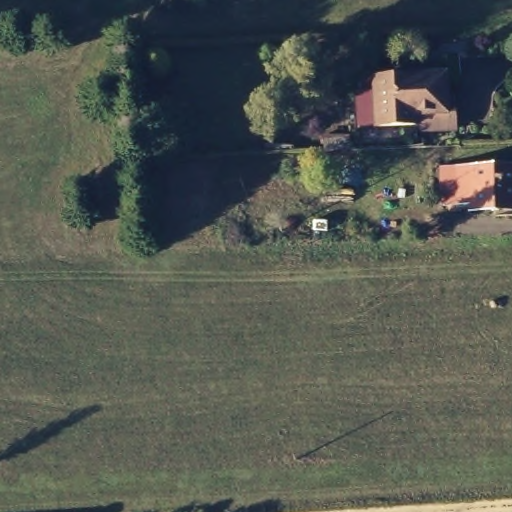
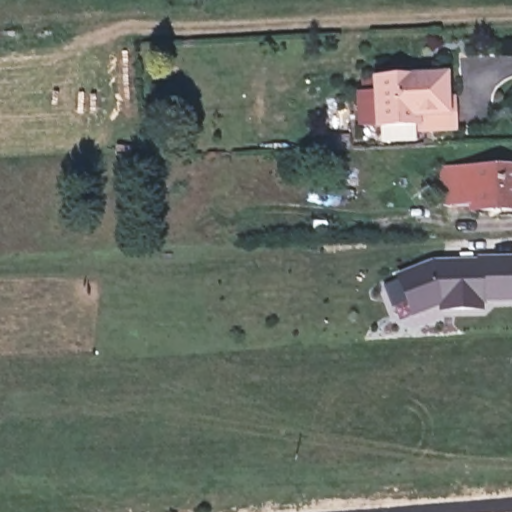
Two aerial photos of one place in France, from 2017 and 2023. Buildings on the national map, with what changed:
unchanged [(354,88),(372,87),(371,73),(442,70),(443,92),(450,92),(451,125),(414,127),(413,120),(374,122),(356,123),(354,88)]
unchanged [(472,199),(457,199),(442,199),(442,164),(455,164),(512,163),(512,205),(472,205),(472,199)]
new [(481,263),(481,260),(512,259),(512,299),(484,300),(485,309),(445,311),(444,302),(437,303),(437,308),(417,317),(400,280),(435,265),(481,263)]

